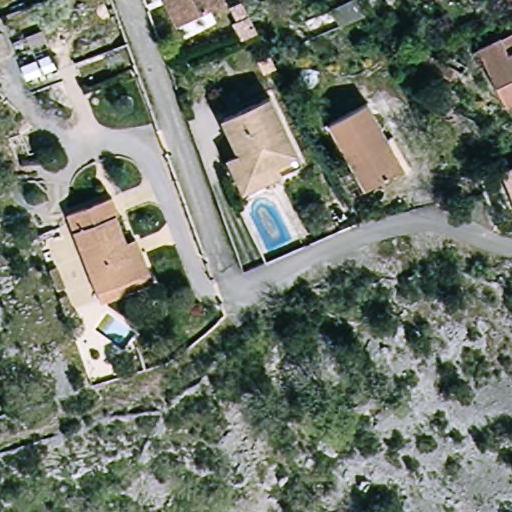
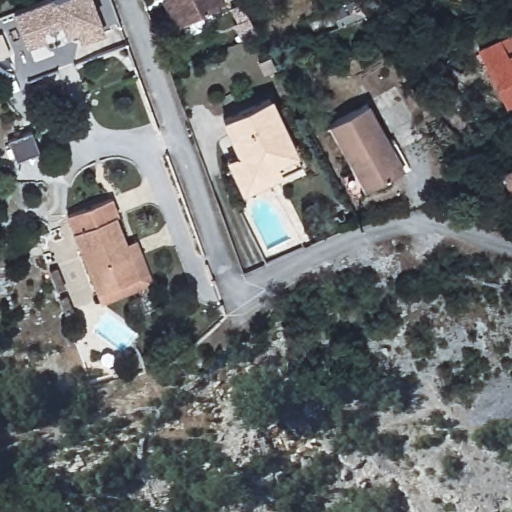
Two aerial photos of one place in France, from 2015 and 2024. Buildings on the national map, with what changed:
new [(104,33),(79,44),(74,30),(64,34),(60,22),(41,31),(45,41),(26,48),(13,12),(43,0),(93,0),(100,19),(104,33)]
unchanged [(180,25),(168,0),(220,0),(223,4),(180,25)]
unchanged [(356,0),(366,17),(314,38),(306,21),(354,0),(356,0)]
unchanged [(509,63),(512,61),(512,114),(509,115),(480,58),(499,47),(509,63)]
unchanged [(239,192),(234,180),(226,158),(240,153),(227,112),(274,94),(296,155),(301,169),(239,192)]
unchanged [(403,171),(363,189),(331,120),(371,102),(403,171)]
unchanged [(501,172),(512,167),(512,200),(501,172)]
unchanged [(96,290),(68,213),(110,197),(128,242),(138,239),(149,270),(153,280),(100,300),(96,290)]

